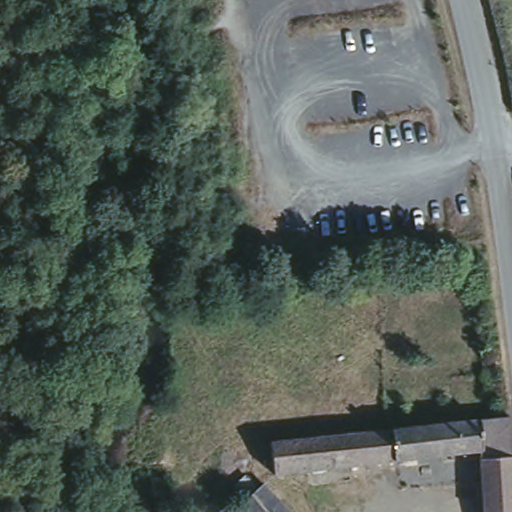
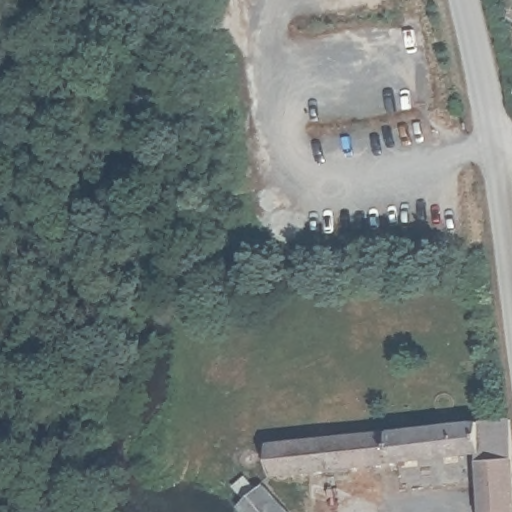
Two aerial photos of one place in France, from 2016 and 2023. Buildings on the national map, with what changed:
unchanged [(512,435),(512,512),(487,512),(480,451),(271,476),(262,436),(386,427),(510,411),(512,435)]
unchanged [(243,512),(234,502),(265,479),(298,512),(243,512)]

